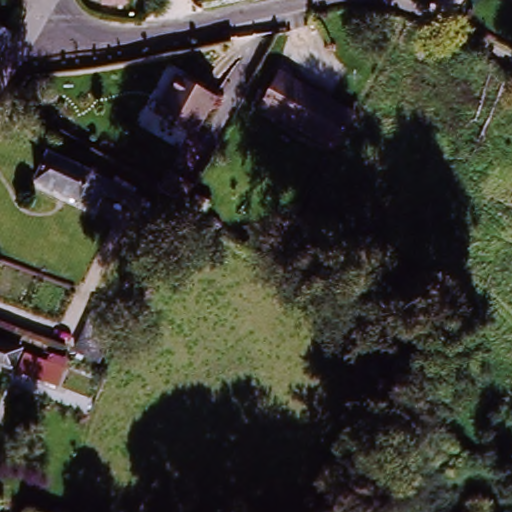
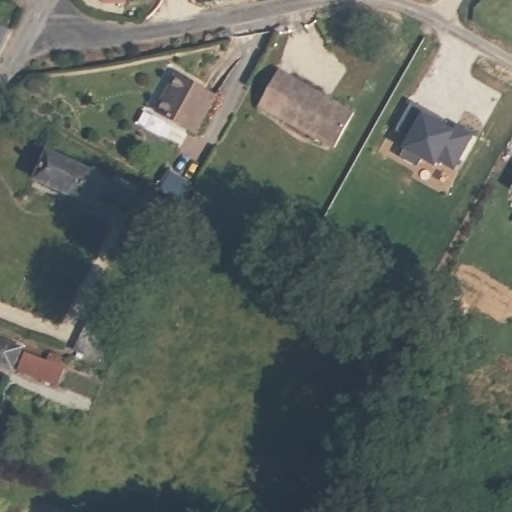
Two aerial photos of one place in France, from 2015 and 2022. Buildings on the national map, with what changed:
unchanged [(0,2),(1,0),(4,0),(20,8),(0,49),(0,2)]
unchanged [(110,13),(107,1),(103,2),(103,0),(128,0),(130,8),(110,13)]
unchanged [(257,106),(277,73),(352,118),(332,151),(257,106)]
unchanged [(218,97),(197,136),(155,113),(174,74),(218,97)]
new [(448,122),(447,127),(455,131),(457,125),(475,136),(455,168),(441,158),(435,167),(422,160),(419,167),(403,157),(407,151),(403,149),(409,138),(397,132),(414,103),(448,122)]
unchanged [(44,153),(94,179),(82,204),(31,177),(44,153)]
unchanged [(124,178),(133,183),(127,194),(118,188),(124,178)]
unchanged [(145,203),(150,193),(164,200),(159,211),(145,203)]
unchanged [(75,350),(104,294),(117,301),(123,304),(95,361),(87,356),(75,350)]
unchanged [(0,367),(0,341),(22,349),(12,371),(0,367)]
unchanged [(27,354),(65,369),(57,386),(20,372),(27,354)]
unchanged [(20,496),(35,500),(34,504),(59,512),(16,512),(20,496)]

